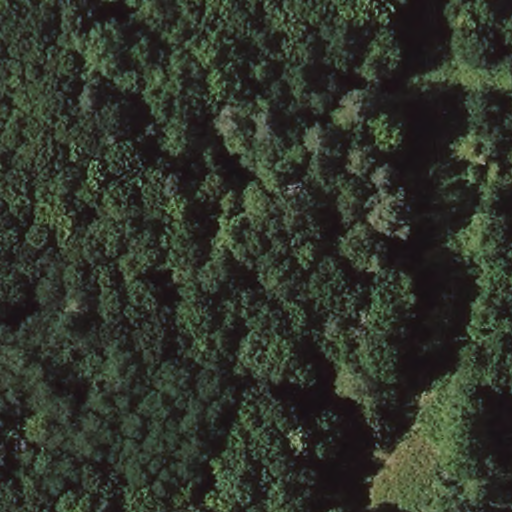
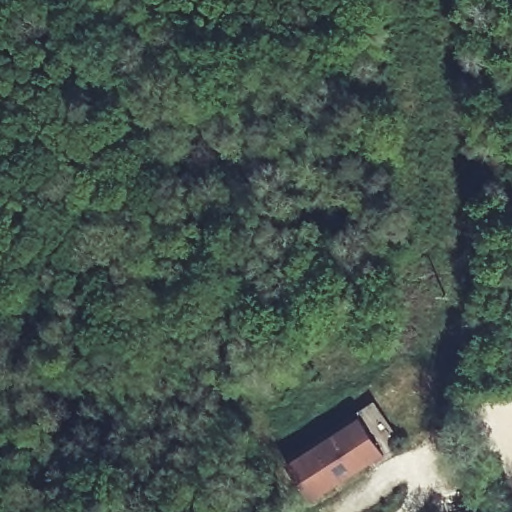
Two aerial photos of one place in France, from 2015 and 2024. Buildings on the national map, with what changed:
new [(385,456),(310,502),(285,463),(360,416),(385,456)]

